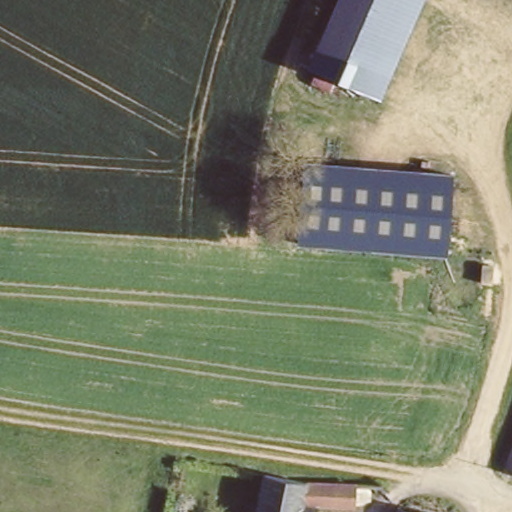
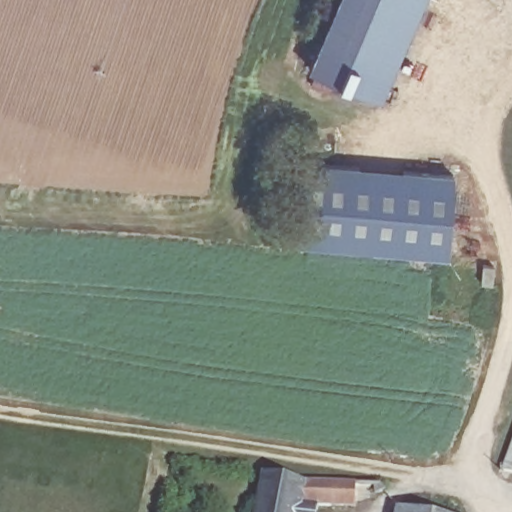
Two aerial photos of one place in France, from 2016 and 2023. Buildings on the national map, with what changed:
unchanged [(303,66),(332,0),(421,0),(377,98),(303,66)]
unchanged [(453,172),(448,254),(295,244),(299,161),(453,172)]
unchanged [(502,471),(512,442),(512,473),(502,471)]
unchanged [(313,486),(355,488),(354,509),(320,510),(319,512),(257,512),(264,478),(313,486)]

